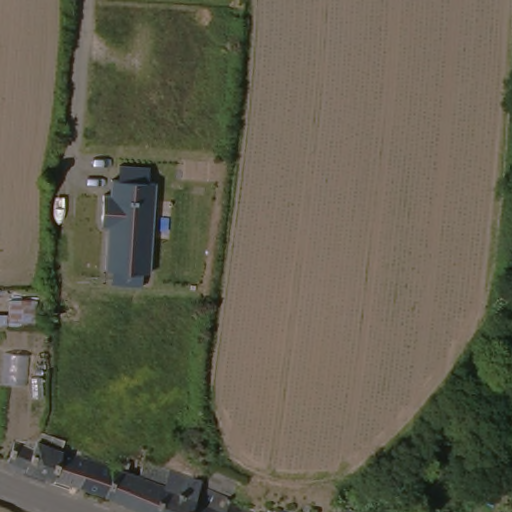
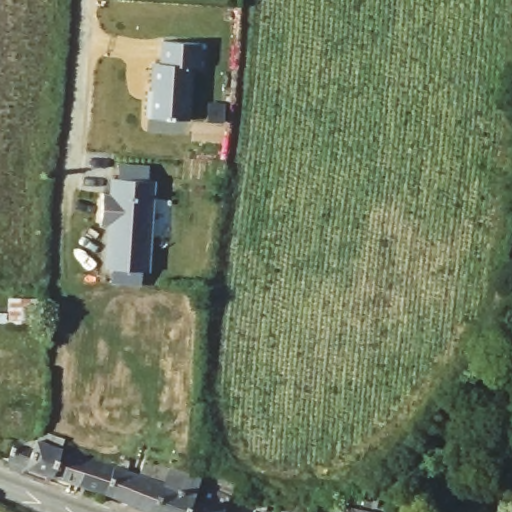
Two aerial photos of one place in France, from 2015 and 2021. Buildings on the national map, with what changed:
new [(143,89),(146,90),(147,62),(155,62),(156,40),(207,43),(206,66),(196,65),(194,120),(141,116),(143,89)]
unchanged [(105,227),(99,226),(99,193),(109,194),(109,178),(151,180),(150,271),(103,269),(105,227)]
unchanged [(1,302),(29,303),(22,338),(0,337),(0,317),(1,302)]
unchanged [(128,500),(114,494),(112,492),(85,483),(59,474),(57,473),(34,466),(34,465),(15,458),(22,439),(34,443),(37,437),(40,438),(44,440),(44,438),(66,446),(69,447),(94,456),(122,465),(144,472),(149,457),(174,466),(173,471),(169,482),(198,492),(200,493),(204,485),(208,483),(233,494),(234,494),(232,497),(227,509),(236,512),(157,512),(128,500)]
unchanged [(339,510),(341,505),(366,510),(378,512),(377,512),(338,512),(339,510)]
unchanged [(288,509),(297,512),(287,512),(288,509)]

